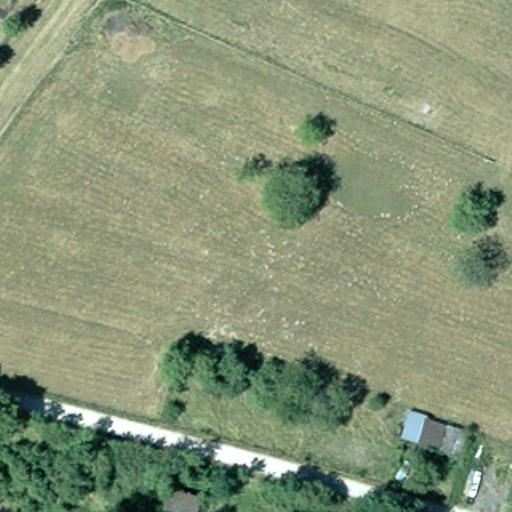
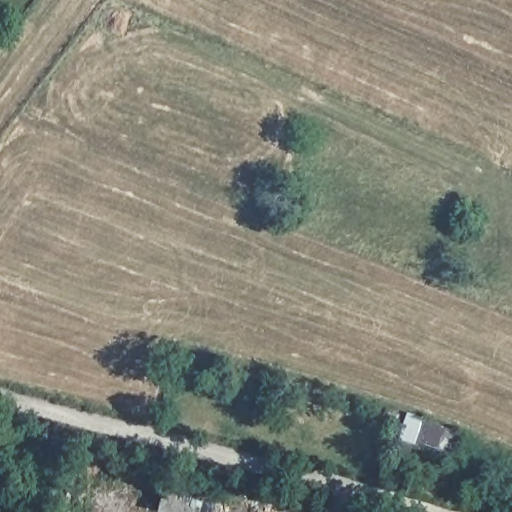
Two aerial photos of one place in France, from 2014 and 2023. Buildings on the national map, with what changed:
unchanged [(465,428),(460,449),(392,426),(398,410),(465,428)]
unchanged [(183,512),(158,507),(163,483),(201,490),(197,512),(183,512)]

